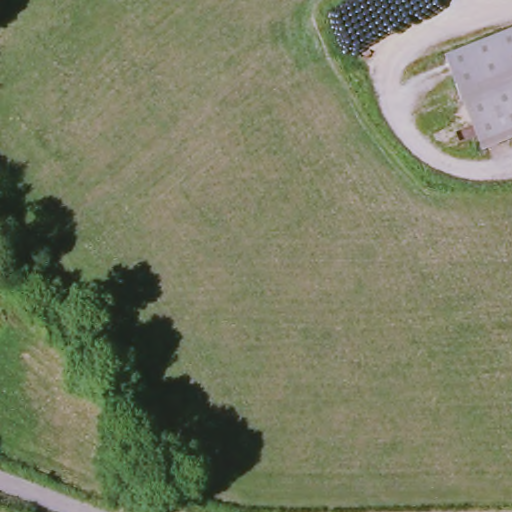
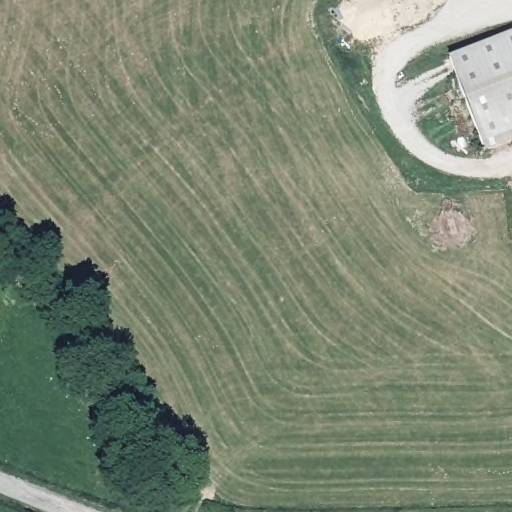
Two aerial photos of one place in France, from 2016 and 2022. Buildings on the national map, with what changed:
unchanged [(512,141),(484,153),(444,64),(512,35),(512,141)]

